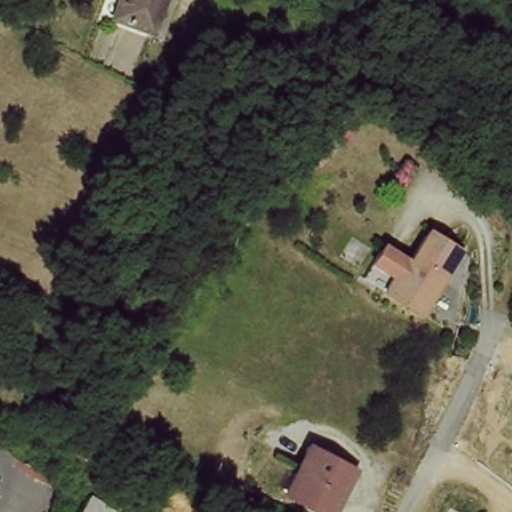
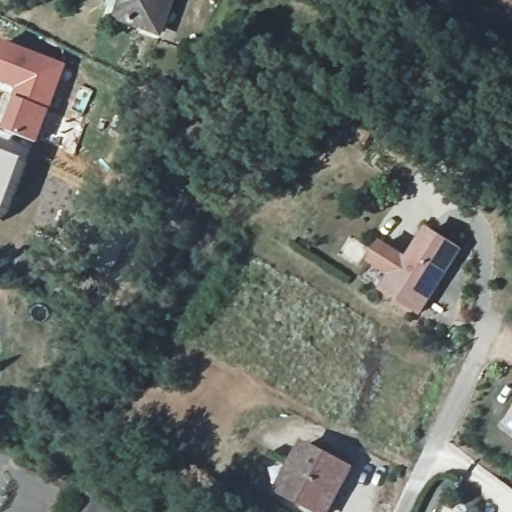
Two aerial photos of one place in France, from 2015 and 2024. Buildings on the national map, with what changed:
unchanged [(168,30),(126,24),(130,0),(179,0),(174,13),(168,30)]
new [(39,143),(3,128),(17,88),(0,82),(0,73),(13,42),(68,65),(39,143)]
unchanged [(428,310),(397,292),(369,275),(379,259),(389,242),(416,258),(435,227),(467,246),(428,310)]
new [(504,427),(512,416),(512,433),(504,427)]
unchanged [(309,448),(356,471),(335,512),(318,512),(293,499),(284,494),(298,471),(309,448)]
unchanged [(86,512),(94,498),(118,512),(86,512)]

